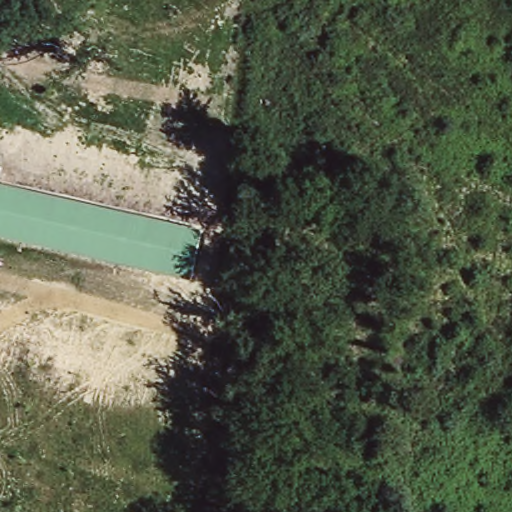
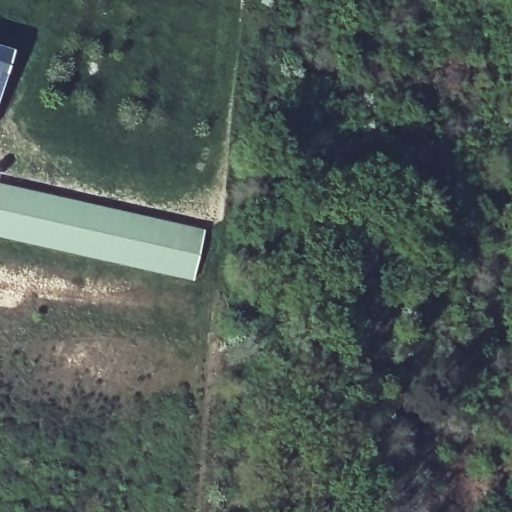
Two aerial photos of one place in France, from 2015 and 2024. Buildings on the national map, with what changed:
new [(0,92),(0,46),(13,50),(0,92)]
unchanged [(197,279),(0,235),(0,183),(208,229),(197,279)]

